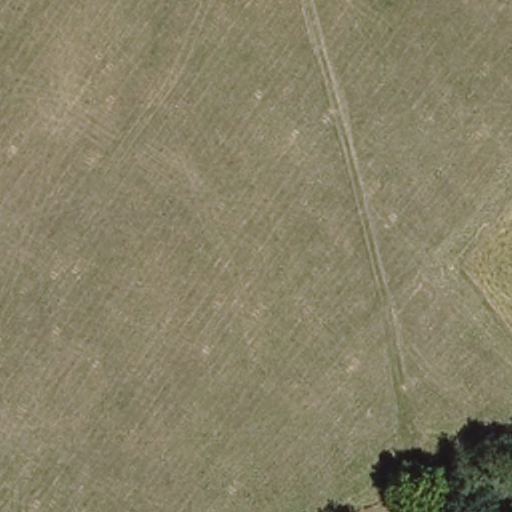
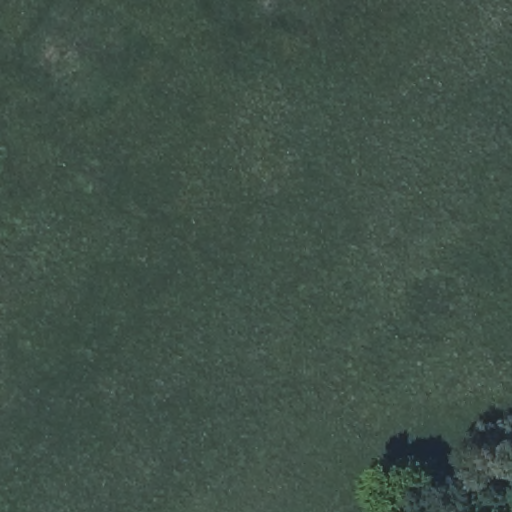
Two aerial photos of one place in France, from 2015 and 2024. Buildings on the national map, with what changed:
unchanged [(431,498),(458,487),(467,512),(436,512),(431,498)]

